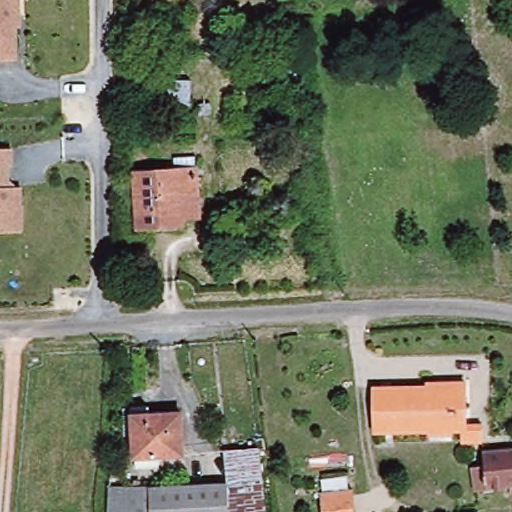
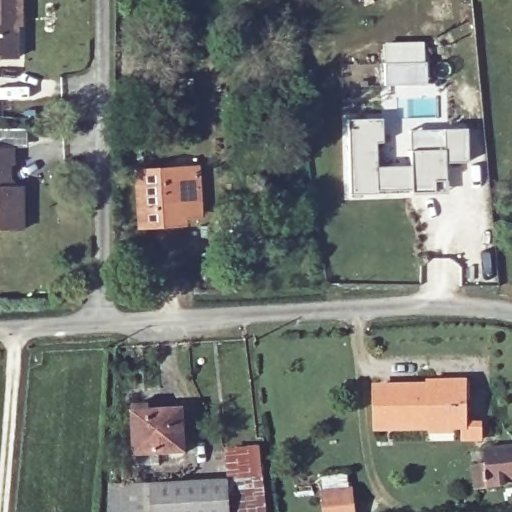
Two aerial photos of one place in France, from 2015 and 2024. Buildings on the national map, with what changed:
unchanged [(23,0),(23,32),(19,32),(19,59),(0,60),(0,0),(23,0)]
new [(423,41),(426,85),(383,86),(382,42),(423,41)]
new [(381,147),(375,147),(376,172),(410,169),(409,154),(407,134),(441,132),(465,130),(467,164),(444,165),(445,183),(434,184),(435,195),(411,197),(411,194),(377,196),(377,199),(350,201),(344,125),(379,123),(381,147)]
unchanged [(16,151),(17,169),(11,170),(11,186),(24,187),(24,234),(0,236),(0,151),(16,151)]
unchanged [(195,170),(196,217),(157,219),(156,228),(136,228),(135,172),(195,170)]
unchanged [(463,390),(461,431),(376,427),(378,386),(463,390)]
unchanged [(181,456),(134,456),(133,413),(133,407),(149,407),(149,413),(180,413),(181,456)]
unchanged [(512,486),(473,491),(471,452),(512,447),(512,486)]
unchanged [(228,488),(228,512),(144,512),(144,490),(228,488)]
unchanged [(129,492),(128,512),(110,512),(110,492),(129,492)]
unchanged [(348,498),(349,512),(321,512),(320,501),(348,498)]

